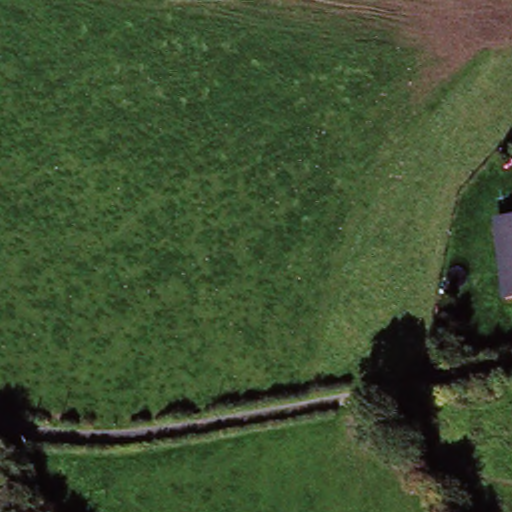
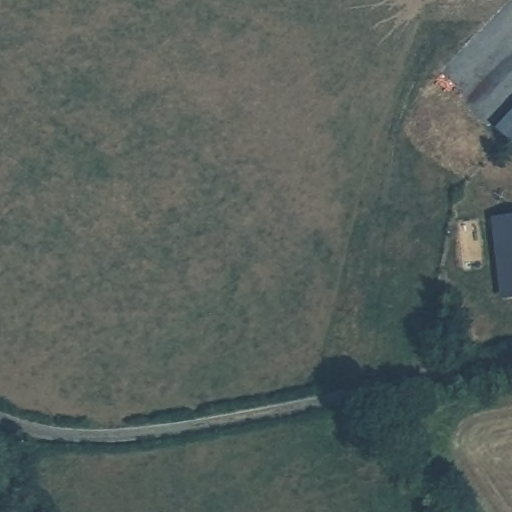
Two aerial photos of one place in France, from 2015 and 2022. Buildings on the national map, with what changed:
new [(512,112),(512,145),(496,130),(512,112)]
unchanged [(490,219),(512,215),(512,300),(507,301),(490,219)]

